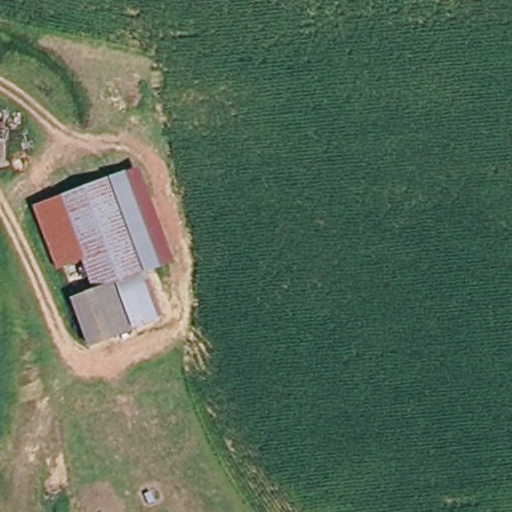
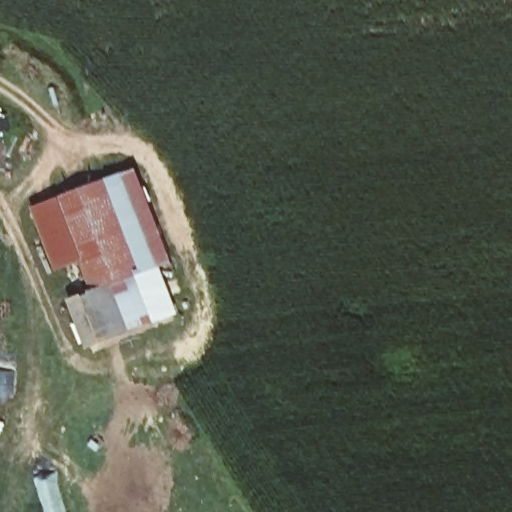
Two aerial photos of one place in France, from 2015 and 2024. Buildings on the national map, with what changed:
unchanged [(159,319),(128,334),(85,348),(68,300),(90,290),(79,263),(54,273),(30,206),(107,178),(159,319)]

